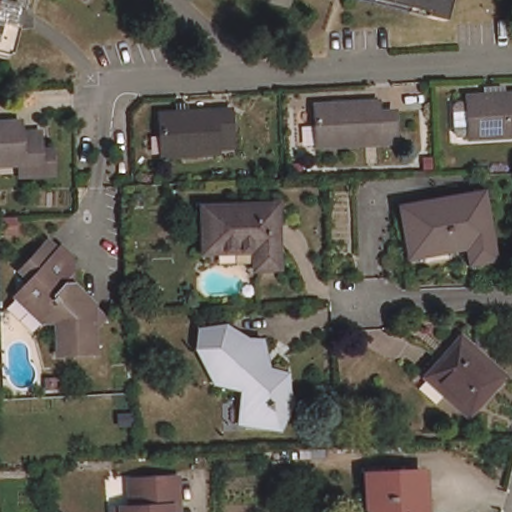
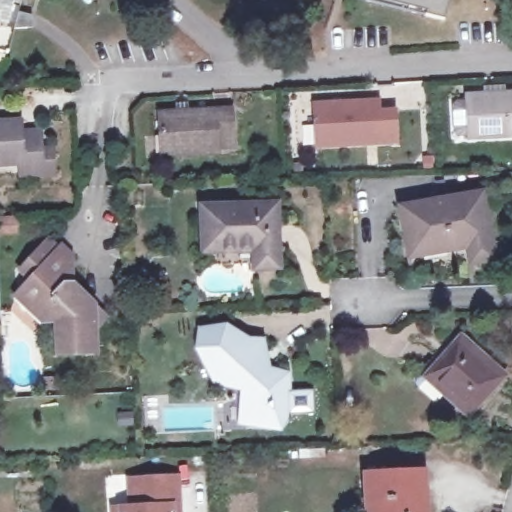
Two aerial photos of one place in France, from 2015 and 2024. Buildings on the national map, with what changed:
unchanged [(23,5),(25,18),(10,20),(4,44),(0,43),(0,0),(14,0),(14,2),(23,5)]
unchanged [(425,16),(427,12),(379,0),(449,0),(443,21),(425,16)]
unchanged [(452,113),(457,108),(467,107),(467,103),(485,101),(485,95),(503,94),(503,101),(512,100),(512,142),(469,144),(469,142),(458,143),(453,138),(452,113)]
unchanged [(232,142),(210,143),(210,148),(162,151),(160,111),(176,110),(175,101),(188,100),(188,109),(230,106),(232,142)]
unchanged [(377,111),(394,110),(395,143),(317,146),(316,106),(333,106),(333,101),(342,101),(342,106),(377,104),(377,111)]
unchanged [(17,164),(0,164),(0,125),(15,125),(16,134),(33,133),(35,157),(47,156),(47,175),(17,176),(17,164)]
unchanged [(465,257),(462,243),(403,253),(395,205),(475,192),(487,254),(465,257)]
unchanged [(257,265),(257,250),(205,250),(203,207),(275,205),(277,264),(257,265)]
unchanged [(22,276),(34,263),(50,245),(60,254),(63,250),(75,260),(75,270),(62,285),(65,289),(77,289),(98,308),(99,355),(59,357),(58,329),(46,329),(30,314),(16,300),(23,293),(30,285),(22,276)]
unchanged [(239,421),(238,394),(241,388),(232,380),(213,380),(212,363),(205,363),(204,346),(195,346),(195,327),(218,326),(235,343),(252,343),(253,375),(279,374),(281,409),(272,420),(239,421)]
unchanged [(471,412),(423,375),(457,335),(503,371),(471,412)]
unchanged [(117,511),(117,504),(135,503),(133,473),(182,470),(185,500),(185,512),(117,512),(117,511)]
unchanged [(371,497),(370,474),(427,472),(429,512),(372,512),(371,497)]

